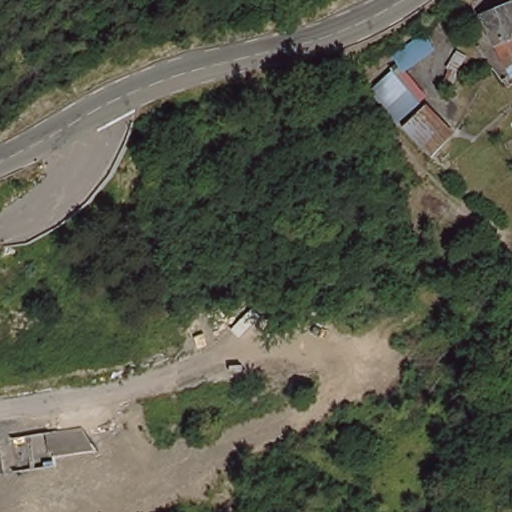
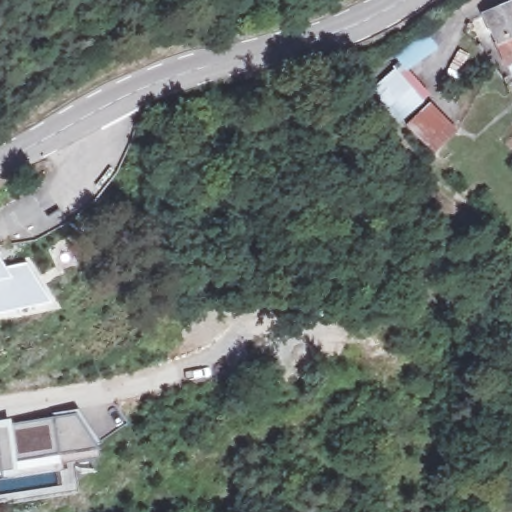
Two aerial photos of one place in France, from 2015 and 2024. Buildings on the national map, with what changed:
unchanged [(502,30),(491,4),(499,0),(512,0),(512,60),(510,60),(496,34),(502,30)]
unchanged [(461,120),(434,147),(373,92),(400,63),(461,120)]
new [(27,258),(52,302),(1,314),(0,314),(0,255),(7,266),(27,258)]
new [(102,451),(17,463),(18,473),(0,476),(0,423),(77,415),(102,451)]
unchanged [(512,496),(512,512),(500,512),(500,494),(512,496)]

